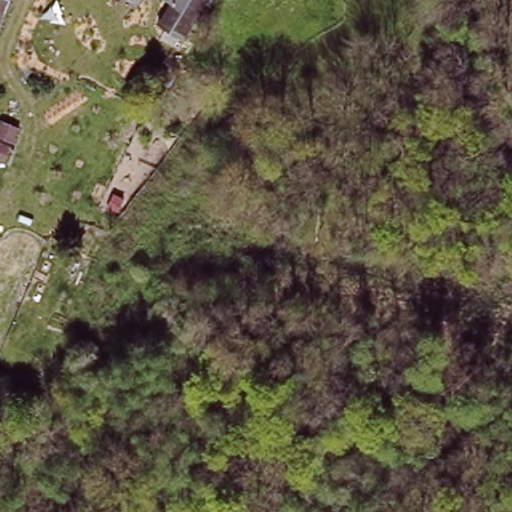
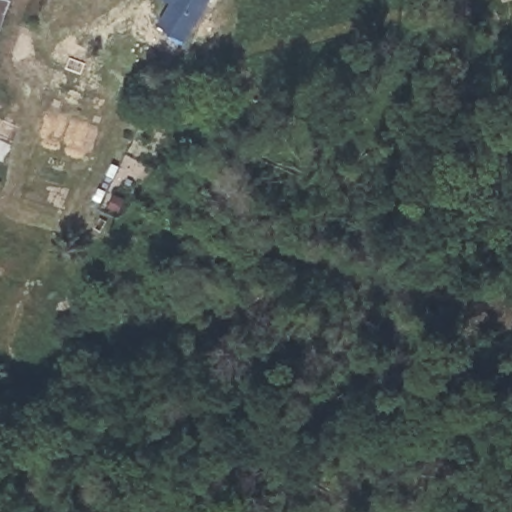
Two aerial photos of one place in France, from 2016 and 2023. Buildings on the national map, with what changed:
unchanged [(0,0),(15,0),(17,1),(0,38),(0,0)]
unchanged [(157,22),(169,0),(206,0),(186,39),(157,22)]

